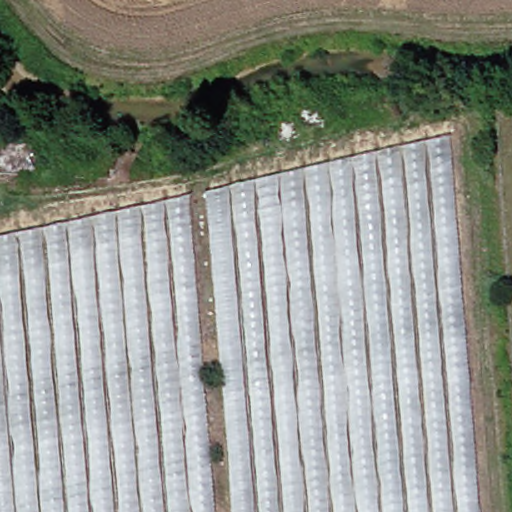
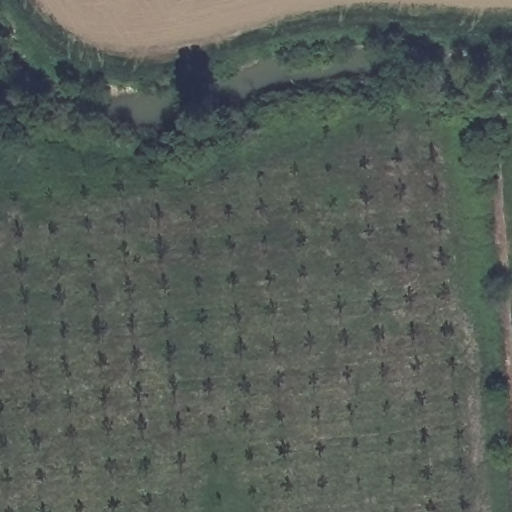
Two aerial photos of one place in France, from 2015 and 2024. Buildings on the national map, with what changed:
demolished [(207,188),(455,133),(483,512),(238,512),(207,188)]
demolished [(0,236),(194,192),(220,512),(0,512),(0,236)]

